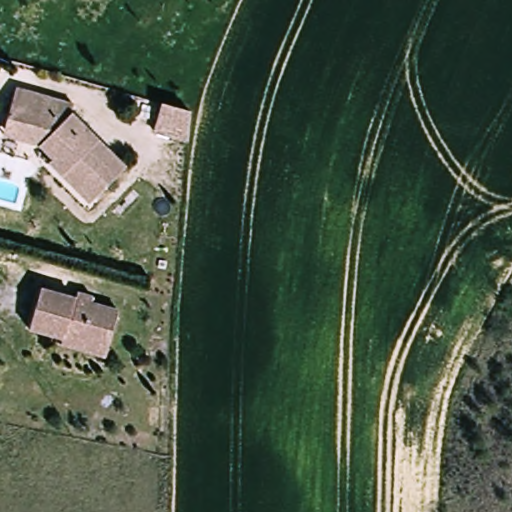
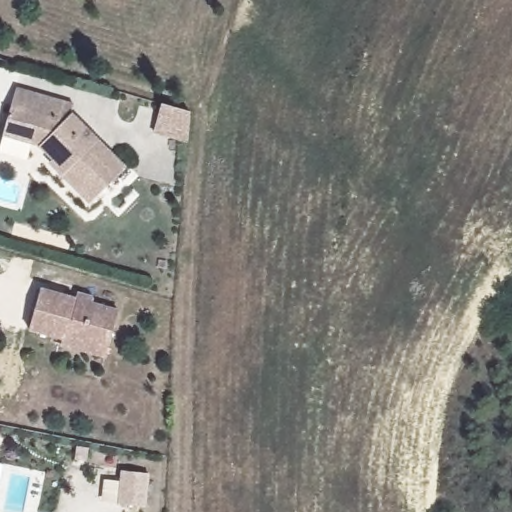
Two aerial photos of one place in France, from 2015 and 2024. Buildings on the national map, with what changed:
unchanged [(81,185),(55,159),(60,155),(45,139),(8,127),(20,83),(73,98),(72,110),(125,164),(101,188),(92,196),(81,185)]
unchanged [(182,144),(147,142),(150,101),(177,109),(184,109),(182,144)]
unchanged [(67,344),(70,336),(33,326),(43,288),(80,297),(81,291),(98,295),(96,302),(127,310),(117,342),(113,357),(67,344)]
new [(104,480),(120,481),(121,471),(150,475),(147,507),(102,502),(104,480)]

